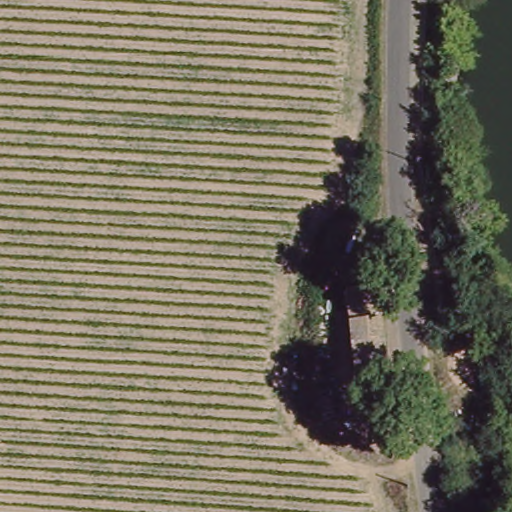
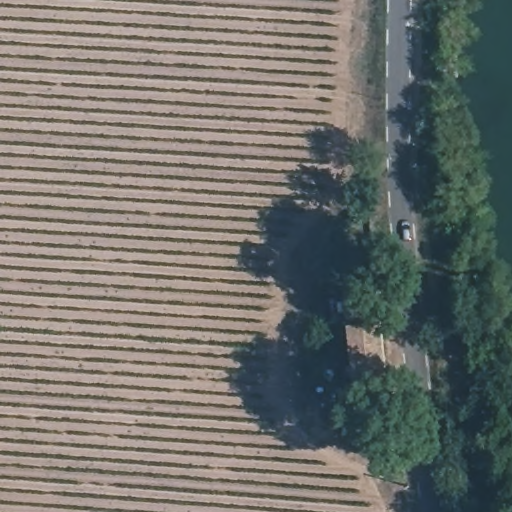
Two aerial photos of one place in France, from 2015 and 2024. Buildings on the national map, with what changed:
unchanged [(357,395),(346,301),(380,296),(392,390),(357,395)]

